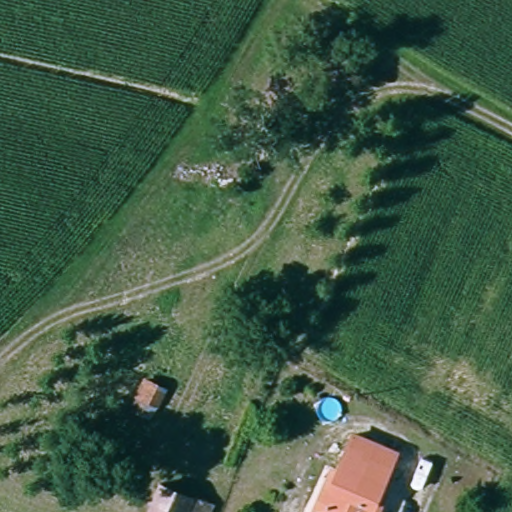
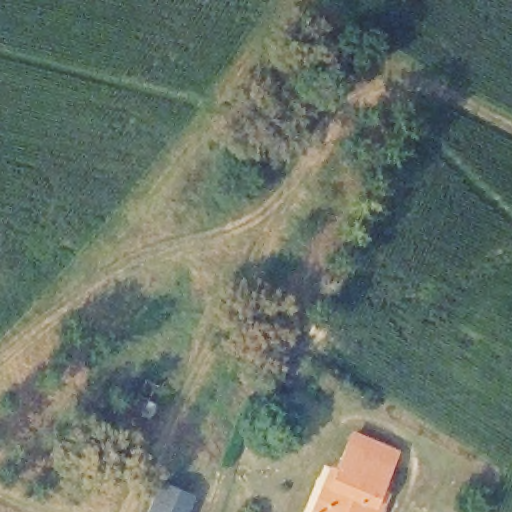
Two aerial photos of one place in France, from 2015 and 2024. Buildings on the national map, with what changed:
unchanged [(396,445),(377,495),(385,499),(380,512),(316,512),(328,478),(333,480),(353,427),(396,445)]
unchanged [(197,512),(160,512),(169,487),(201,500),(197,512)]

